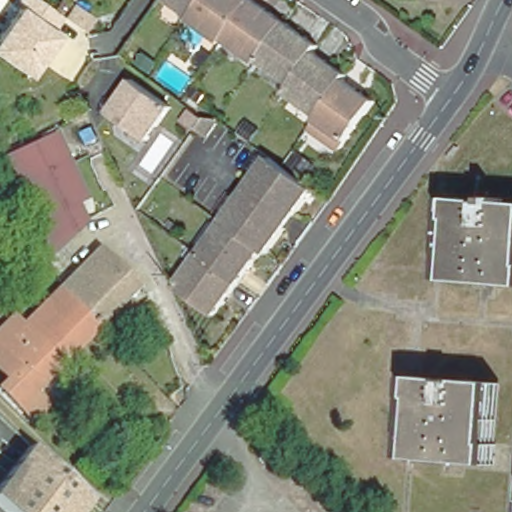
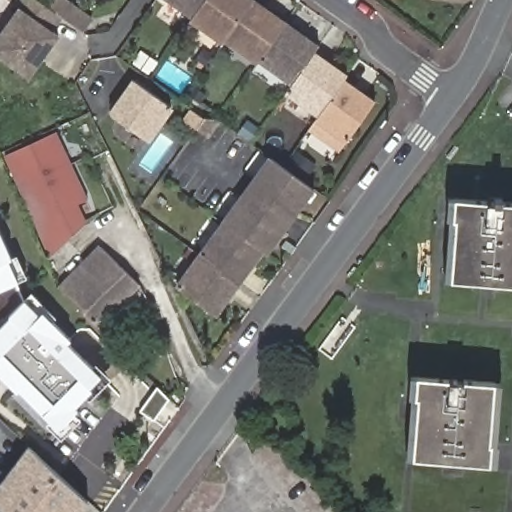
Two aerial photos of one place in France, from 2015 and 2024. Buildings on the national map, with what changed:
unchanged [(67,0),(74,5),(94,20),(85,33),(65,19),(62,17),(52,31),(60,37),(30,78),(0,56),(0,37),(21,8),(18,7),(23,0),(39,0),(54,11),(62,0),(67,0)]
unchanged [(169,0),(206,0),(194,18),(169,0)]
unchanged [(206,0),(253,0),(254,1),(243,16),(227,41),(225,44),(192,21),(194,18),(206,0)]
unchanged [(243,16),(254,1),(286,24),(269,49),(261,61),(259,63),(227,41),(243,16)]
unchanged [(319,46),(315,52),(307,64),(294,84),(261,61),(269,49),(286,24),(319,46)]
unchanged [(348,75),(342,83),(324,109),(321,115),(288,92),(294,84),(307,64),(315,52),(348,75)]
unchanged [(116,103),(132,81),(171,108),(149,140),(147,139),(109,113),(116,103)]
unchanged [(374,106),(341,155),(309,132),(321,115),(324,109),(342,83),(374,106)]
unchanged [(30,226),(0,160),(4,158),(3,155),(50,132),(54,141),(86,201),(73,207),(84,226),(46,262),(30,226)]
unchanged [(227,219),(247,190),(270,157),(313,189),(290,221),(269,252),(268,252),(264,250),(258,246),(225,221),(227,219)]
unchanged [(484,281),(484,277),(453,275),(447,274),(451,217),(447,217),(448,197),(456,198),(492,200),(492,196),(504,197),(504,201),(512,201),(512,282),(484,281)]
unchanged [(225,221),(258,246),(264,250),(240,282),(201,254),(225,221)]
new [(16,255),(26,278),(19,282),(16,283),(24,298),(31,292),(57,318),(54,321),(72,338),(68,342),(92,367),(96,363),(111,378),(89,400),(85,396),(76,406),(79,408),(75,413),(81,419),(61,439),(46,425),(50,421),(42,412),(19,389),(17,392),(0,375),(0,231),(12,257),(16,255)]
unchanged [(101,247),(139,285),(98,327),(60,288),(101,247)]
unchanged [(216,315),(178,286),(201,254),(240,282),(231,295),(227,300),(216,315)]
demolished [(35,391),(45,401),(46,403),(37,412),(29,421),(0,391),(0,387),(6,380),(0,374),(0,329),(13,315),(24,325),(60,288),(98,327),(35,391)]
unchanged [(461,378),(461,382),(459,399),(431,397),(429,421),(420,421),(419,437),(449,440),(447,460),(411,458),(415,396),(412,396),(413,376),(438,377),(461,378)]
unchanged [(500,442),(503,442),(502,462),(495,462),(447,460),(449,440),(419,437),(420,421),(429,421),(431,397),(459,399),(461,382),(467,382),(467,379),(498,381),(504,381),(500,442)]
unchanged [(84,501),(76,512),(2,512),(0,510),(0,483),(26,447),(84,501)]

